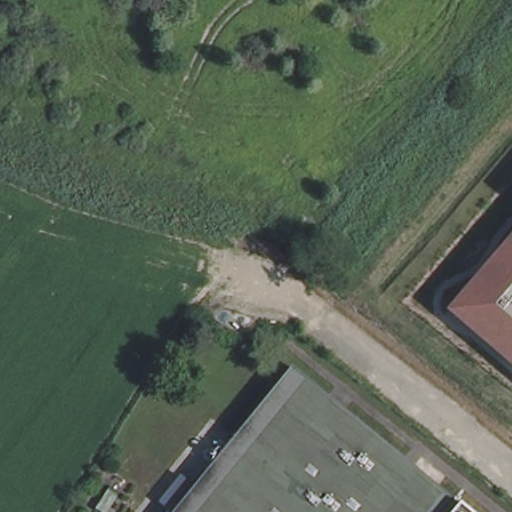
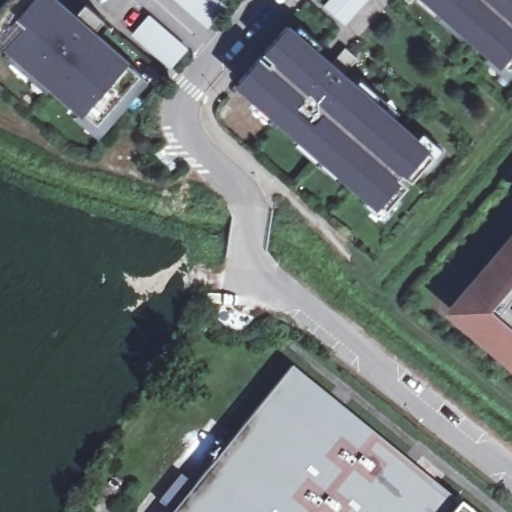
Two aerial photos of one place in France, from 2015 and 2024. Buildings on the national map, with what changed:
new [(8,0),(62,0),(78,13),(86,4),(103,20),(96,30),(130,59),(127,62),(140,73),(149,80),(100,136),(75,116),(79,113),(50,88),(46,92),(6,56),(10,52),(0,43),(0,8),(8,0)]
new [(228,8),(209,29),(177,0),(220,0),(228,8)]
new [(346,24),(325,5),(330,0),(368,0),(346,24)]
new [(512,66),(509,69),(503,64),(501,66),(424,0),(512,0),(512,66)]
new [(151,14),(189,48),(171,69),(133,35),(151,14)]
new [(261,54),(271,63),(274,60),(264,50),(289,22),(430,147),(428,150),(434,155),(413,179),(407,174),(406,175),(403,173),(399,176),(402,180),(401,181),(408,185),(386,209),(381,204),(377,208),(236,85),(261,54)]
unchanged [(512,230),(512,368),(443,311),(512,230)]
unchanged [(182,475),(194,485),(291,366),(459,503),(452,512),(173,512),(160,502),(182,475)]
unchanged [(452,512),(459,503),(471,512),(452,512)]

